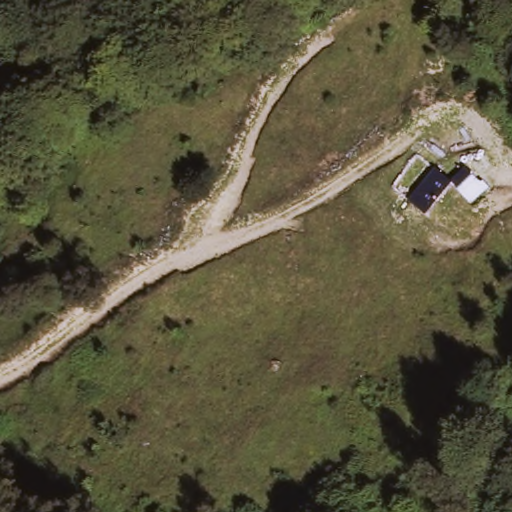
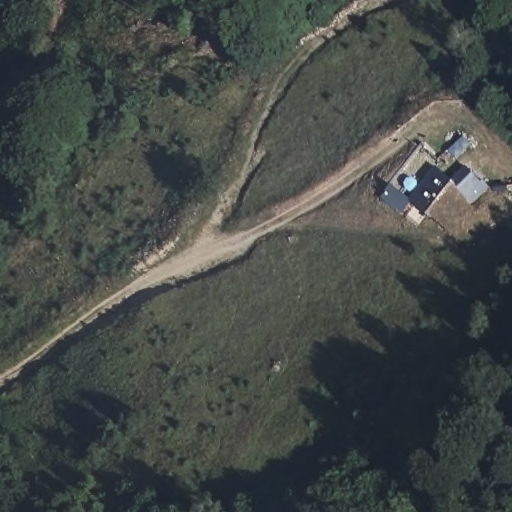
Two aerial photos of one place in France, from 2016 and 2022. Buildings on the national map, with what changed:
unchanged [(469,207),(443,238),(418,211),(444,182),(469,207)]

